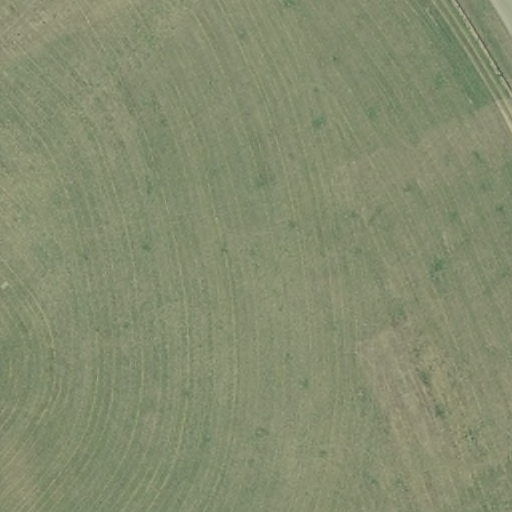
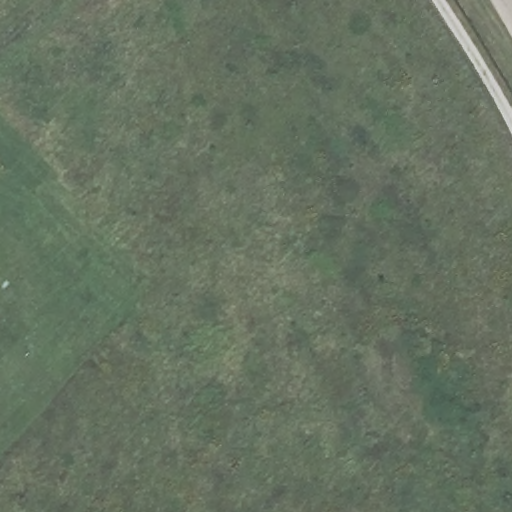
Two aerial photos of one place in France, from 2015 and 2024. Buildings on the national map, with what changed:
[]

